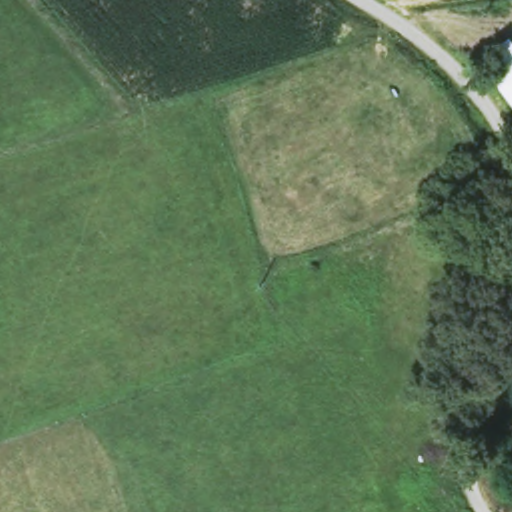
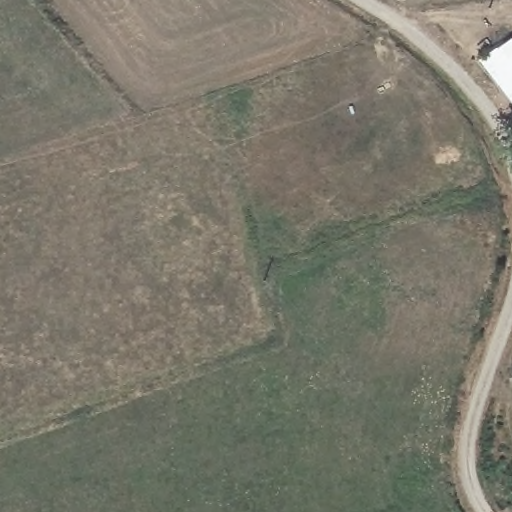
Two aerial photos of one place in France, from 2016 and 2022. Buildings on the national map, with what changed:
unchanged [(503,67),(493,50),(512,39),(512,104),(488,74),(503,67)]

